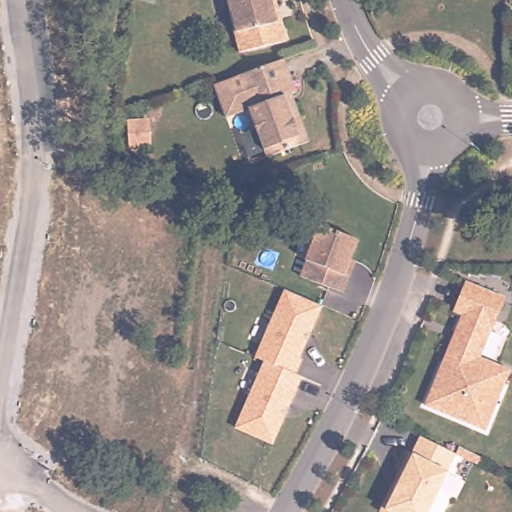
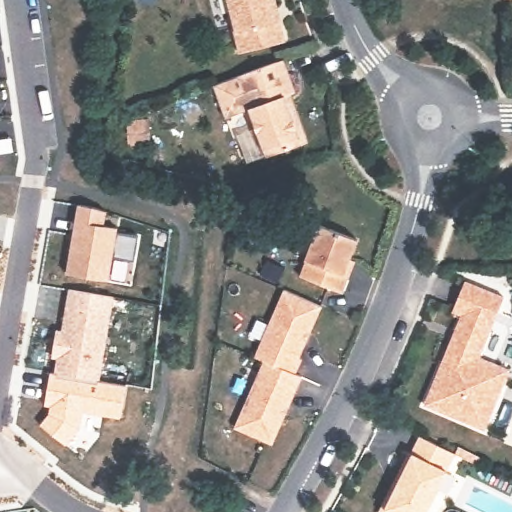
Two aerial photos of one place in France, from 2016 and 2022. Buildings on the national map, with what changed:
unchanged [(287,44),(249,53),(241,55),(231,14),(235,13),(231,0),(277,0),(279,9),(283,28),(287,44)]
unchanged [(292,95),(295,106),(307,144),(267,158),(250,111),(228,119),(217,86),(285,61),(296,94),(292,95)]
new [(150,119),(150,146),(129,147),(127,120),(150,119)]
new [(77,205),(106,210),(104,225),(119,228),(117,234),(137,237),(134,262),(113,258),(109,281),(65,273),(77,205)]
unchanged [(357,244),(342,277),(346,280),(338,297),(298,279),(305,264),(303,262),(318,227),(357,244)]
unchanged [(431,397),(465,316),(456,312),(467,282),(507,298),(482,358),(512,370),(512,371),(488,430),(457,418),(428,406),(431,397)]
new [(100,381),(126,385),(121,419),(83,414),(80,428),(66,445),(40,425),(49,415),(49,408),(44,407),(50,373),(54,373),(56,359),(49,358),(55,329),(61,329),(67,288),(114,296),(100,381)]
unchanged [(300,360),(305,361),(297,376),(301,379),(272,446),(235,430),(265,363),(255,359),(285,290),(324,307),(300,360)]
unchanged [(450,473),(438,500),(431,512),(383,512),(412,454),(415,455),(423,438),(458,455),(450,473)]

